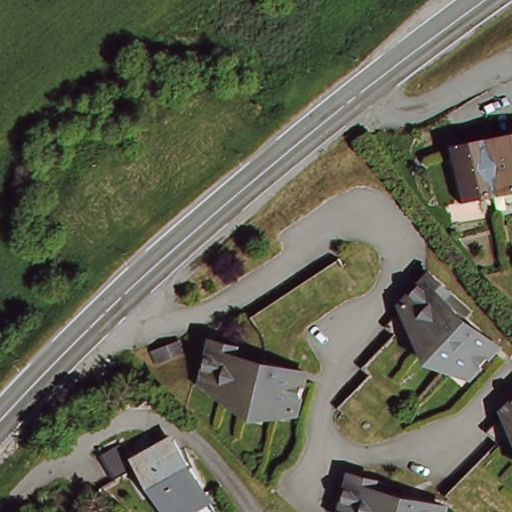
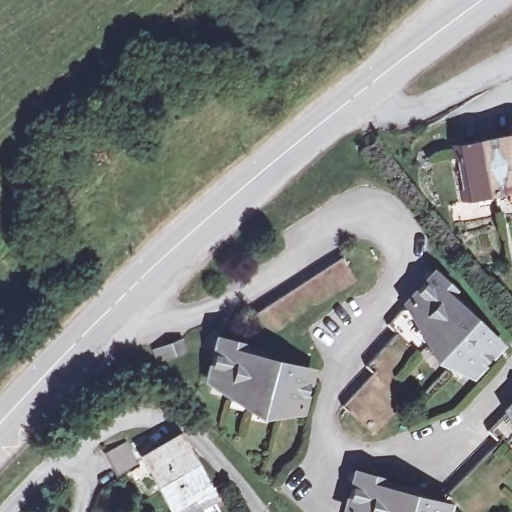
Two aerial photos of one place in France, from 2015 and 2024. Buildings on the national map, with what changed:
unchanged [(512,190),(469,199),(457,147),(512,136),(512,190)]
unchanged [(341,259),(365,295),(276,354),(253,318),(341,259)]
unchanged [(504,341),(499,347),(479,371),(462,355),(457,361),(434,338),(424,350),(433,358),(404,392),(409,398),(380,431),(348,402),(378,369),(371,363),(402,330),(393,321),(434,276),(439,270),(457,287),(452,293),(466,305),(504,341)]
unchanged [(281,401),(279,408),(248,401),(249,394),(228,389),(229,383),(208,378),(216,344),(218,337),(270,350),(268,356),(311,368),(309,375),(301,406),(281,401)]
unchanged [(181,344),(186,354),(161,364),(158,354),(181,344)]
unchanged [(448,495),(498,441),(489,432),(512,407),(512,491),(492,512),(466,512),(448,495)]
unchanged [(219,512),(207,512),(204,507),(197,512),(184,512),(181,507),(149,452),(167,441),(163,436),(178,427),(181,433),(214,489),(226,508),(219,512)]
unchanged [(131,437),(145,462),(123,474),(109,449),(131,437)]
unchanged [(450,507),(449,512),(348,512),(355,483),(357,474),(382,480),(380,488),(399,493),(450,507)]

